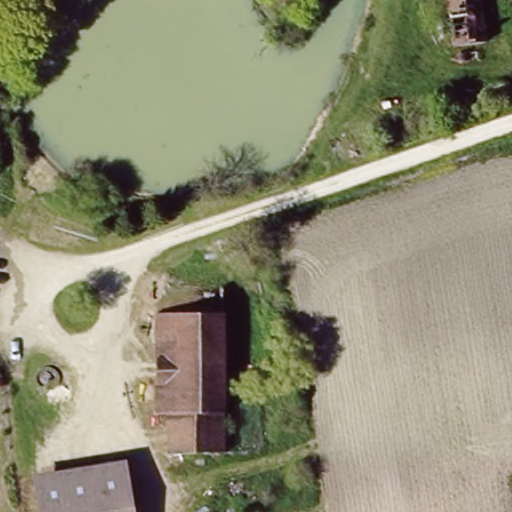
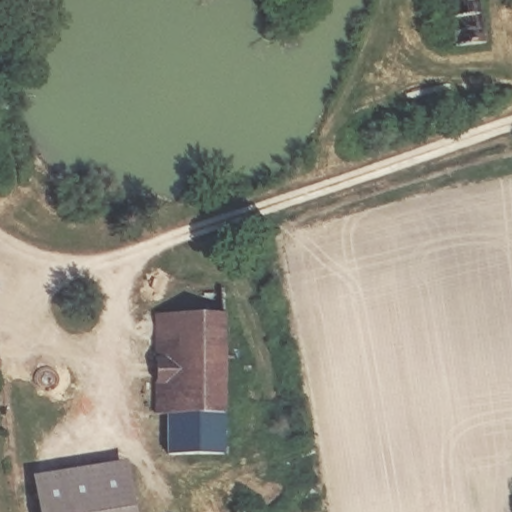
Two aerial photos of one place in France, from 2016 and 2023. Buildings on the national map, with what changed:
unchanged [(442,0),(483,0),(491,39),(452,47),(442,0)]
unchanged [(226,312),(226,456),(176,457),(173,412),(163,407),(161,313),(226,312)]
unchanged [(140,460),(147,512),(48,512),(43,477),(140,460)]

